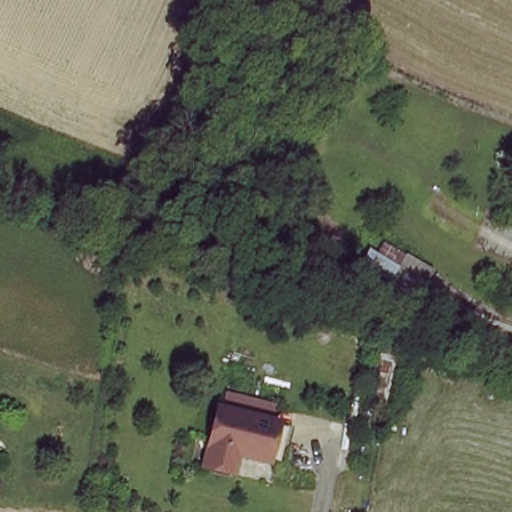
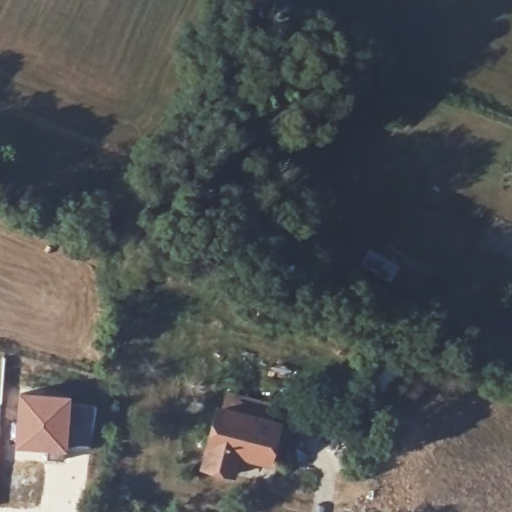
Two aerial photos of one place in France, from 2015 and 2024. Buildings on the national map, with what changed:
unchanged [(364,265),(372,249),(380,252),(385,244),(432,270),(418,295),(364,265)]
new [(18,390),(71,393),(66,452),(13,448),(18,390)]
unchanged [(282,464),(269,461),(237,453),(232,471),(203,465),(218,406),(279,422),(293,425),(282,464)]

